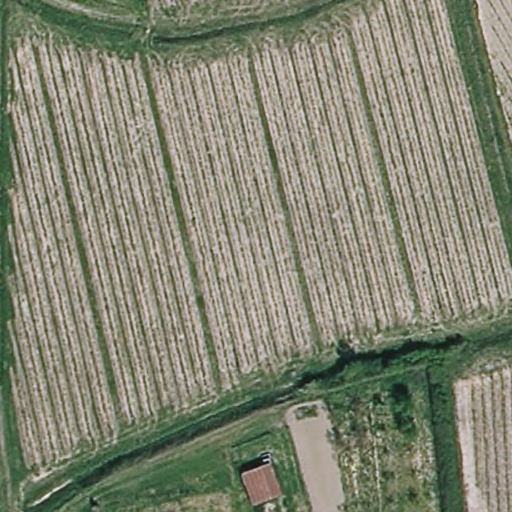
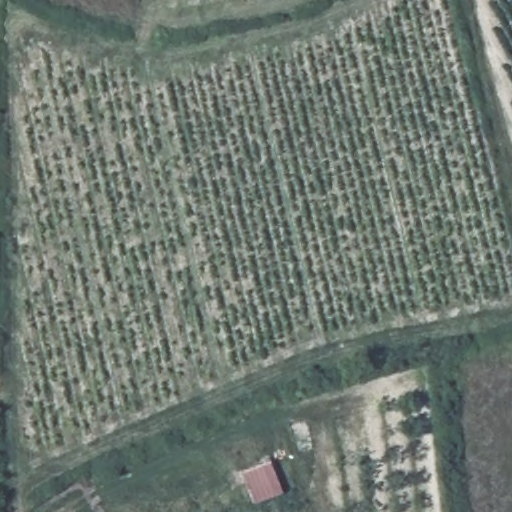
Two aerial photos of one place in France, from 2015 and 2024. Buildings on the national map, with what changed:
unchanged [(271,462),(283,491),(253,502),(242,473),(271,462)]

